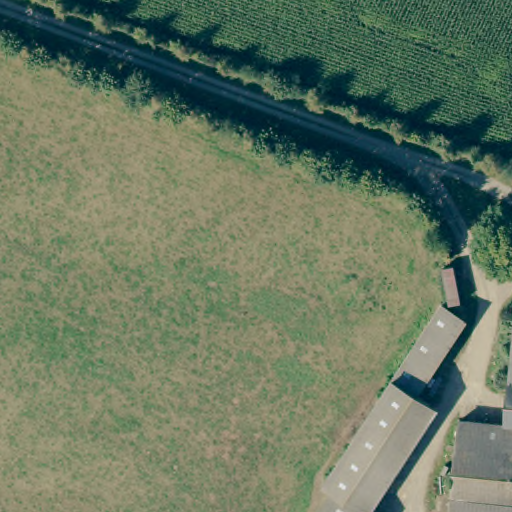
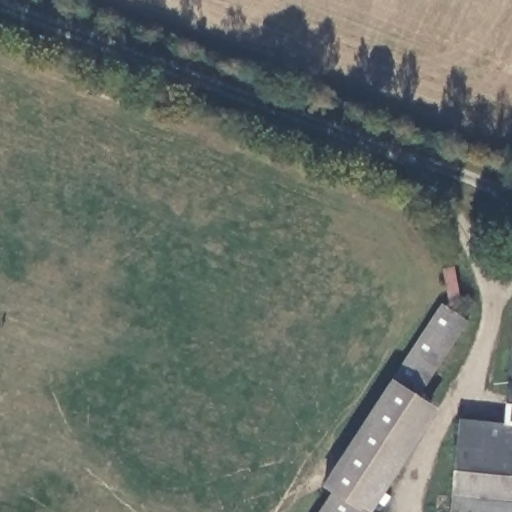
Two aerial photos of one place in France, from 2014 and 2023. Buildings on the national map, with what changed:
unchanged [(371,512),(367,512),(350,502),(337,495),(330,490),(343,471),(405,385),(397,380),(443,304),(456,312),(470,321),(472,322),(426,398),(437,404),(371,512)]
unchanged [(503,432),(505,421),(512,337),(512,432),(503,432)]
unchanged [(496,501),(450,498),(452,464),(456,418),(505,421),(503,432),(496,501)]
unchanged [(496,501),(503,432),(512,432),(512,502),(496,501)]
unchanged [(337,495),(350,502),(367,512),(326,512),(337,495)]

